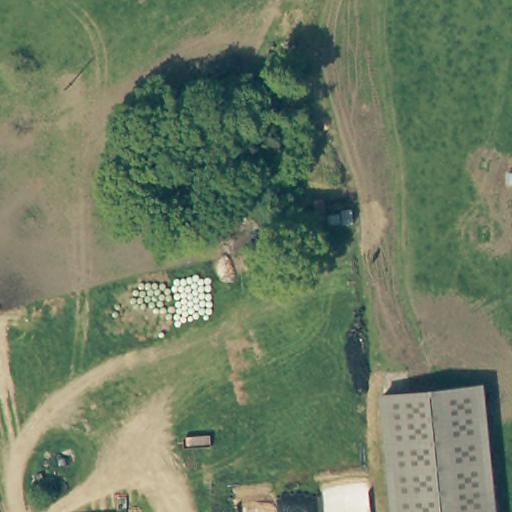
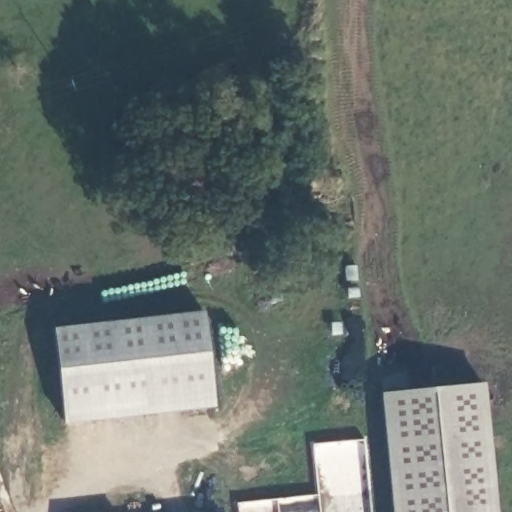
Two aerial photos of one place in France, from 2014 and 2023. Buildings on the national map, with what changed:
new [(215,407),(64,425),(52,327),(204,310),(215,407)]
unchanged [(394,512),(382,390),(482,381),(495,512),(394,512)]

